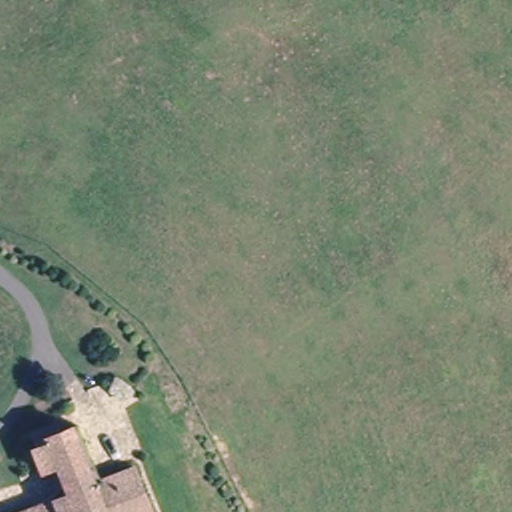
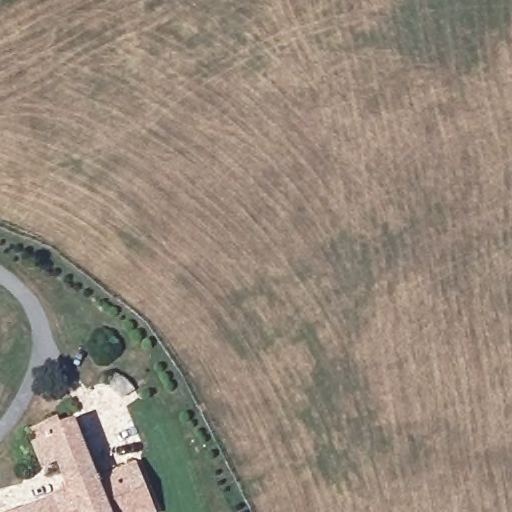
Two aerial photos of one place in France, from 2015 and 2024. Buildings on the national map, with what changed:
unchanged [(58,474),(44,478),(36,454),(42,452),(37,438),(56,432),(58,439),(81,432),(89,458),(84,460),(93,490),(129,478),(139,512),(42,512),(67,501),(58,474)]

